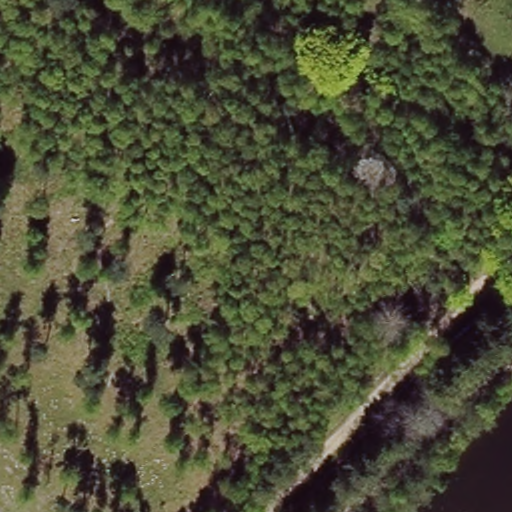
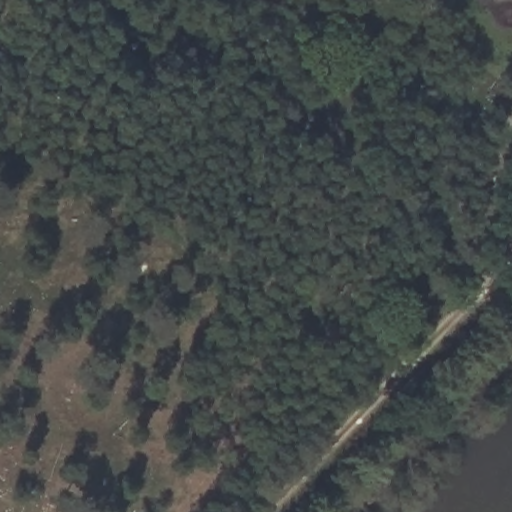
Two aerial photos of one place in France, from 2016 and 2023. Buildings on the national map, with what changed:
[]

